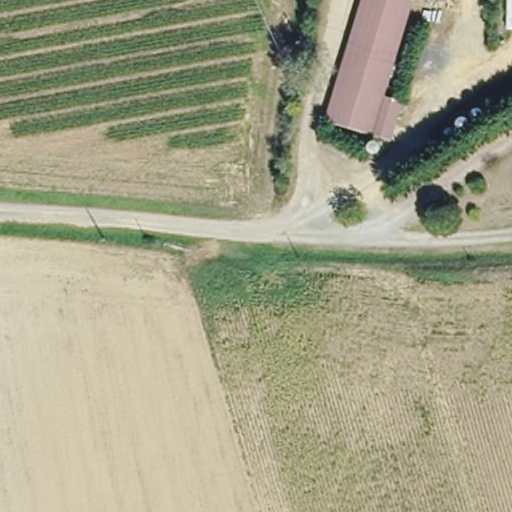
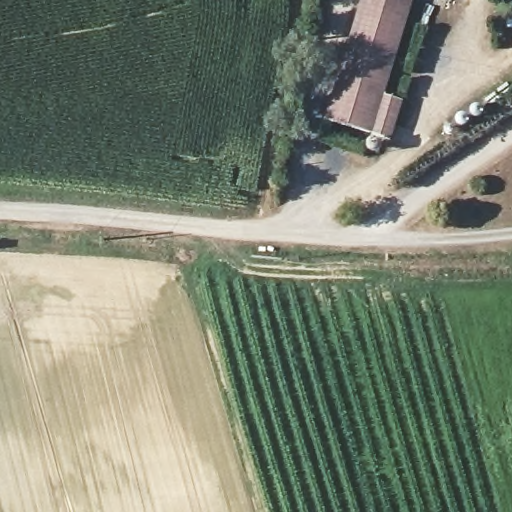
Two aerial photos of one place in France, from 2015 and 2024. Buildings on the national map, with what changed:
unchanged [(398,98),(386,139),(324,117),(359,0),(407,0),(378,93),(398,98)]

